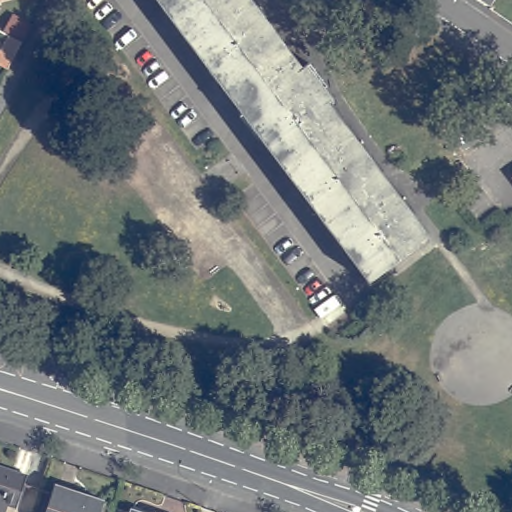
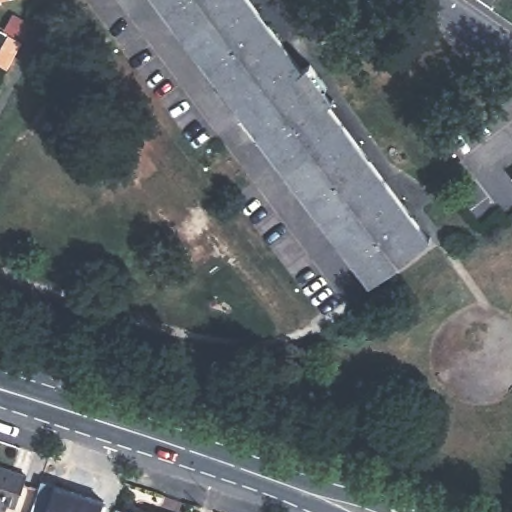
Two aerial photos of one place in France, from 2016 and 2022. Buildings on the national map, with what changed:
unchanged [(0,0),(22,0),(0,5),(0,0)]
unchanged [(372,286),(157,0),(252,0),(433,240),(372,286)]
unchanged [(4,68),(0,66),(0,45),(6,34),(18,41),(4,68)]
unchanged [(19,504),(7,501),(4,512),(0,512),(0,466),(28,475),(19,504)]
unchanged [(57,484),(102,498),(97,512),(48,512),(57,484)]
unchanged [(137,507),(151,512),(136,512),(137,507)]

